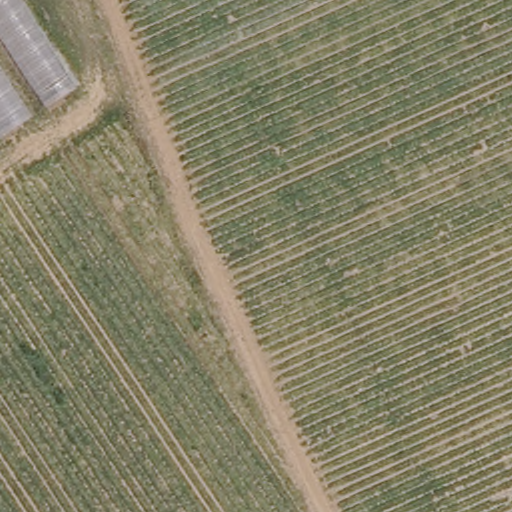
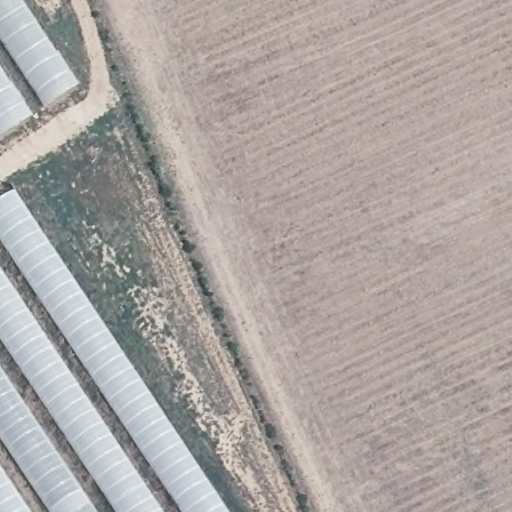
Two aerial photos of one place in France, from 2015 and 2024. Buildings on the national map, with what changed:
unchanged [(77,90),(0,139),(0,0),(21,0),(77,90)]
new [(228,512),(0,512),(0,201),(15,191),(228,512)]

